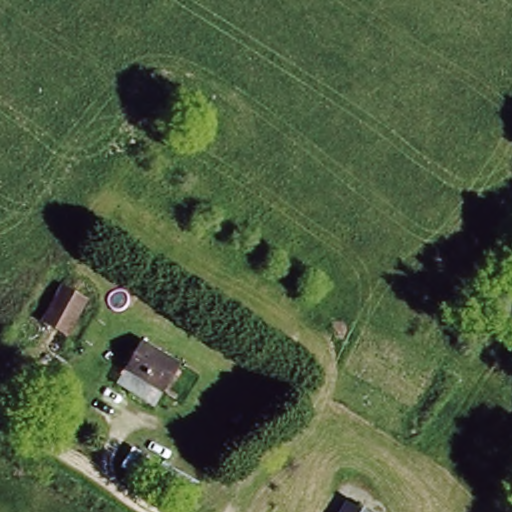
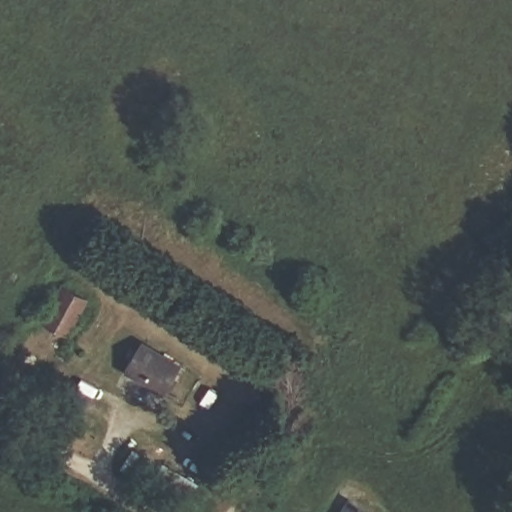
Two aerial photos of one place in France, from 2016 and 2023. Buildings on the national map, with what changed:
unchanged [(62,285),(89,303),(70,340),(40,326),(62,285)]
unchanged [(127,365),(143,335),(175,352),(160,382),(127,365)]
unchanged [(352,498),(372,512),(342,512),(352,498)]

